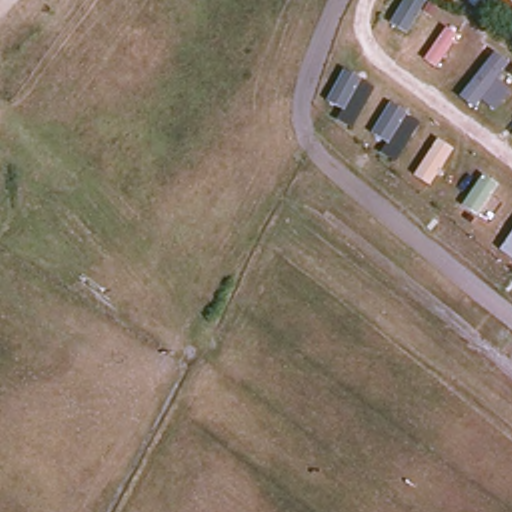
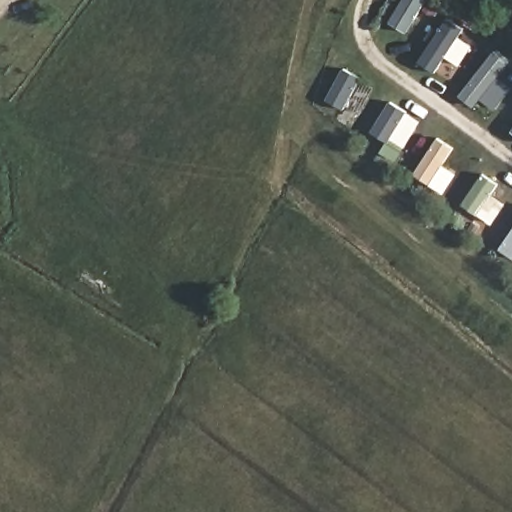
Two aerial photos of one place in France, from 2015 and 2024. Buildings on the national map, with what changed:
unchanged [(404,0),(425,0),(407,34),(390,23),(404,0)]
unchanged [(483,0),(502,0),(495,9),(483,0)]
unchanged [(507,0),(512,0),(512,3),(507,0)]
unchanged [(495,53),(508,64),(496,79),(510,89),(495,109),(482,98),(474,106),(461,96),(495,53)]
unchanged [(374,85),(352,127),(338,119),(341,109),(324,100),(343,69),(374,85)]
unchanged [(421,120),(394,160),(383,152),(388,143),(371,131),(389,103),(421,120)]
unchanged [(512,133),(512,135),(511,134),(512,133)]
unchanged [(437,139),(452,149),(430,184),(414,174),(437,139)]
unchanged [(481,177),(496,186),(477,215),(461,205),(481,177)]
unchanged [(512,235),(512,258),(502,250),(512,235)]

